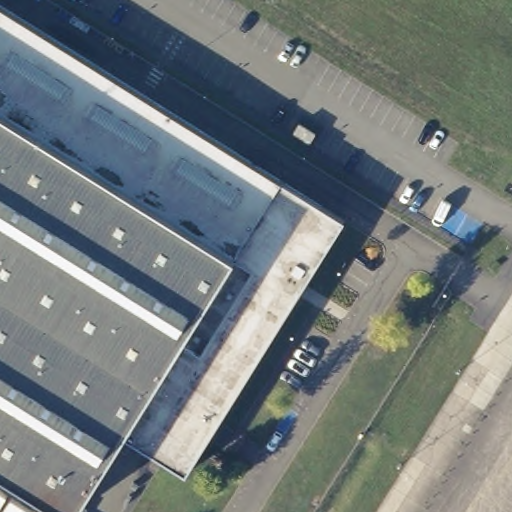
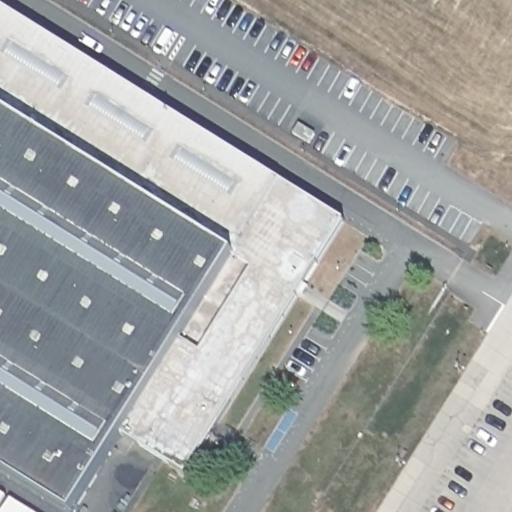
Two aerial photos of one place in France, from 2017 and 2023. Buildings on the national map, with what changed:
unchanged [(238,255),(298,294),(218,422),(155,383),(75,512),(72,512),(0,467),(0,107),(238,255)]
unchanged [(299,124),(315,134),(309,142),(294,132),(299,124)]
unchanged [(238,255),(281,175),(345,219),(298,294),(238,255)]
unchanged [(72,512),(0,512),(0,467),(72,512)]

